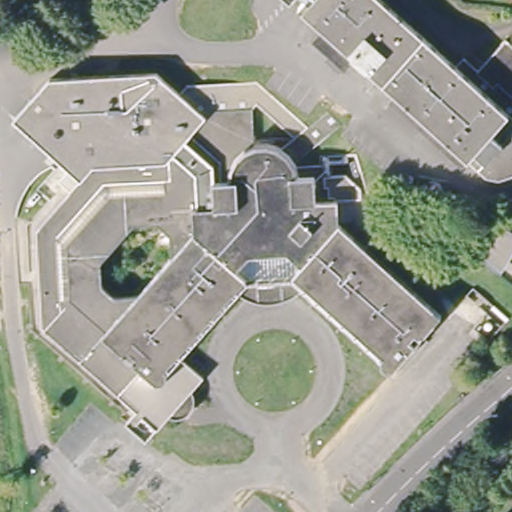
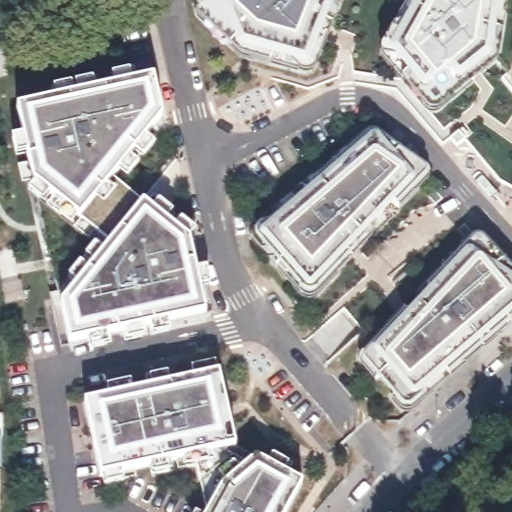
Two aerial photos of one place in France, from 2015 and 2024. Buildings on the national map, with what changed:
new [(219,0),(332,0),(307,65),(247,49),(207,13),(219,0)]
demolished [(288,7),(280,0),(295,0),(288,7)]
demolished [(495,182),(482,179),(342,55),(323,38),(300,17),(312,2),(309,0),(372,0),(452,71),(462,59),(477,71),(504,41),(512,47),(512,175),(508,179),(495,182)]
new [(422,0),(498,0),(489,56),(435,103),(392,52),(422,0)]
demolished [(299,284),(295,288),(246,292),(240,288),(180,355),(205,377),(149,440),(130,423),(140,412),(45,328),(37,230),(71,193),(58,181),(70,168),(16,118),(51,80),(155,75),(179,97),(187,87),(257,83),(309,127),(328,111),(341,125),(294,166),(296,170),(323,169),(327,205),(337,204),(338,225),(440,316),(392,371),(379,361),(382,357),(299,284)]
new [(162,116),(112,176),(142,202),(190,239),(205,311),(71,343),(59,306),(111,240),(80,216),(33,181),(17,109),(153,78),(162,116)]
new [(262,236),(375,136),(377,134),(425,169),(408,184),(307,285),(262,236)]
new [(361,356),(476,236),(512,276),(512,311),(416,395),(421,400),(409,409),(402,405),(364,364),(361,356)]
new [(256,458),(303,483),(287,512),(208,512),(210,509),(193,453),(102,472),(89,402),(219,373),(236,445),(256,458)]
demolished [(363,460),(330,444),(338,426),(372,441),(363,460)]
new [(2,437),(1,471),(0,471),(0,437),(2,437)]

